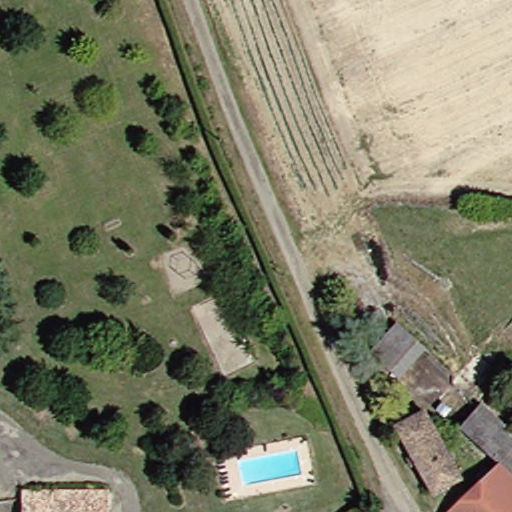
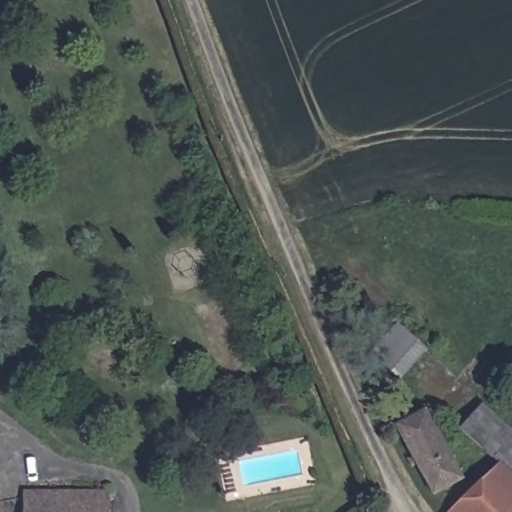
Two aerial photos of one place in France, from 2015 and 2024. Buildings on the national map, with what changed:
unchanged [(404,324),(432,349),(404,381),(375,354),(404,324)]
unchanged [(512,424),(512,464),(503,456),(470,427),(492,404),(512,424)]
unchanged [(469,475),(441,489),(404,419),(429,407),(469,475)]
unchanged [(512,464),(512,512),(447,512),(503,456),(512,464)]
unchanged [(34,491),(118,493),(118,512),(33,512),(34,491)]

